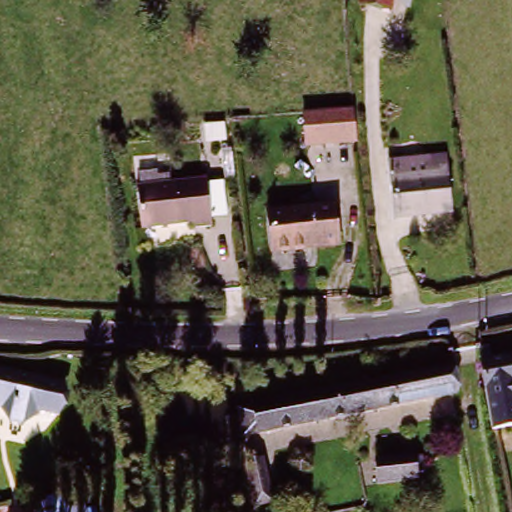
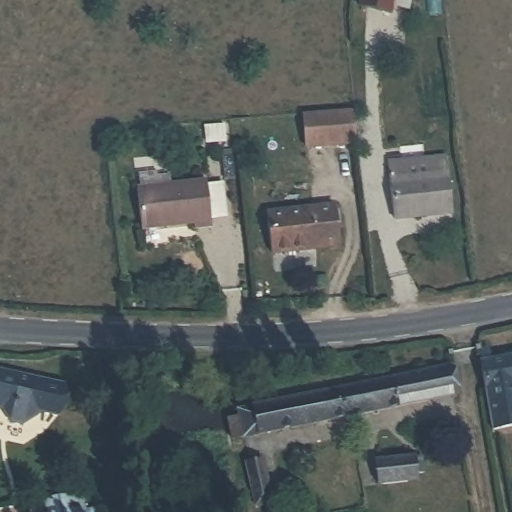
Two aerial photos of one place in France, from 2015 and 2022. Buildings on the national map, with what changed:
unchanged [(360,8),(362,0),(393,0),(390,15),(360,8)]
unchanged [(302,117),(352,112),(356,144),(305,150),(302,117)]
unchanged [(387,162),(448,155),(451,173),(390,181),(387,162)]
unchanged [(390,181),(451,173),(456,214),(395,222),(390,181)]
unchanged [(135,192),(204,184),(208,231),(192,233),(191,226),(140,232),(135,192)]
unchanged [(336,253),(270,259),(265,218),(332,212),(336,253)]
unchanged [(478,349),(487,348),(490,361),(512,357),(512,425),(491,429),(478,349)]
unchanged [(446,372),(450,400),(233,442),(228,421),(242,418),(241,417),(240,410),(446,372)]
unchanged [(7,423),(0,413),(0,373),(44,383),(63,386),(57,415),(39,412),(37,417),(25,426),(7,423)]
unchanged [(257,504),(246,461),(262,457),(271,500),(257,504)]
unchanged [(420,476),(410,477),(410,481),(372,487),(370,465),(416,458),(420,476)]
unchanged [(81,512),(35,512),(33,500),(78,493),(81,512)]

